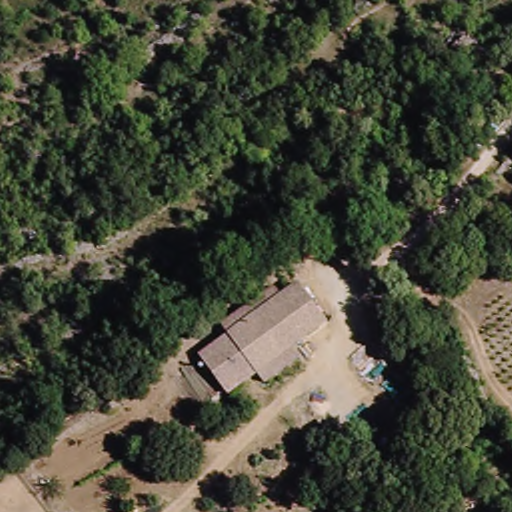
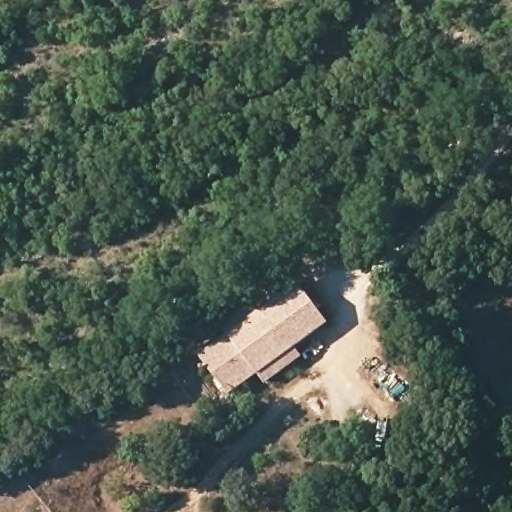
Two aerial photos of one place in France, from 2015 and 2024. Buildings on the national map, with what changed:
unchanged [(332,323),(228,395),(195,357),(299,280),(332,323)]

